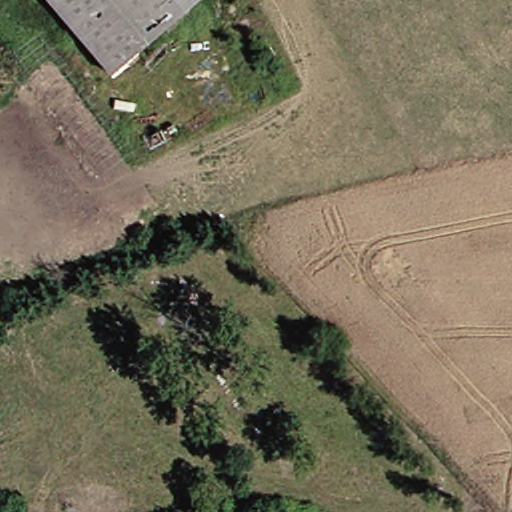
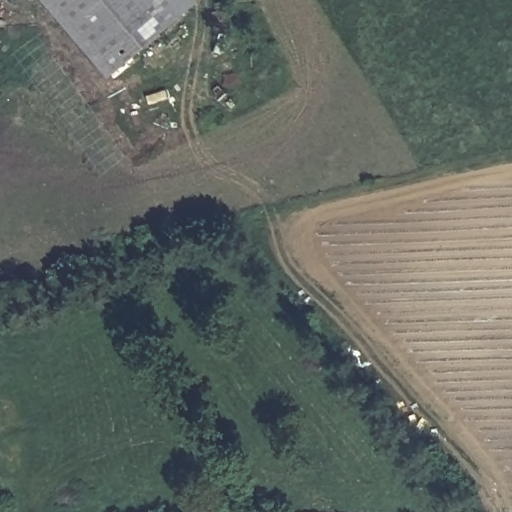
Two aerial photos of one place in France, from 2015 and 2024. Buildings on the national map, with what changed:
unchanged [(73,0),(196,0),(201,7),(129,67),(73,0)]

